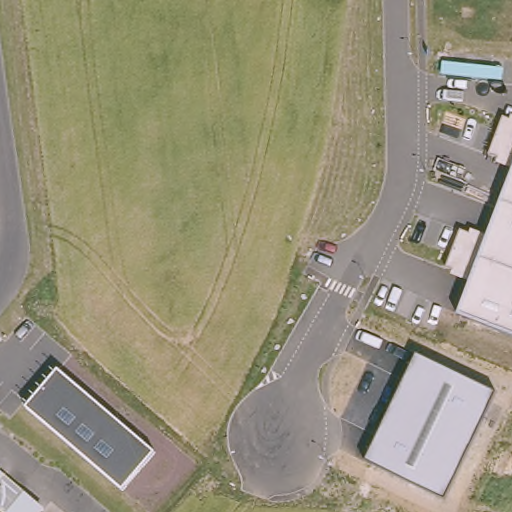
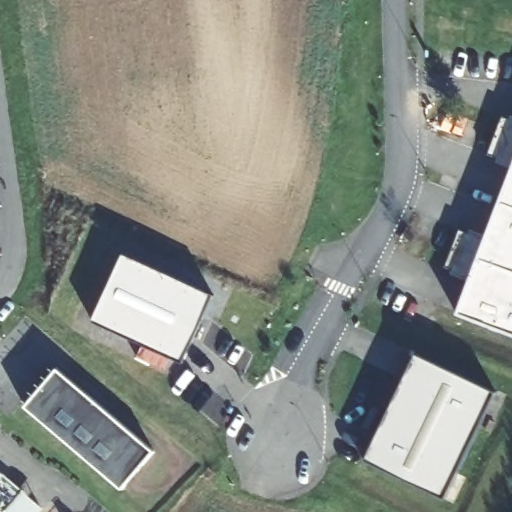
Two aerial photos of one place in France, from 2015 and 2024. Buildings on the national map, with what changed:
unchanged [(452,312),(512,152),(512,333),(452,312)]
new [(123,253),(215,295),(183,363),(92,321),(123,253)]
unchanged [(445,497),(360,460),(412,353),(495,390),(445,497)]
unchanged [(57,368),(155,451),(123,489),(26,407),(57,368)]
unchanged [(41,512),(3,512),(0,509),(0,471),(44,508),(41,512)]

